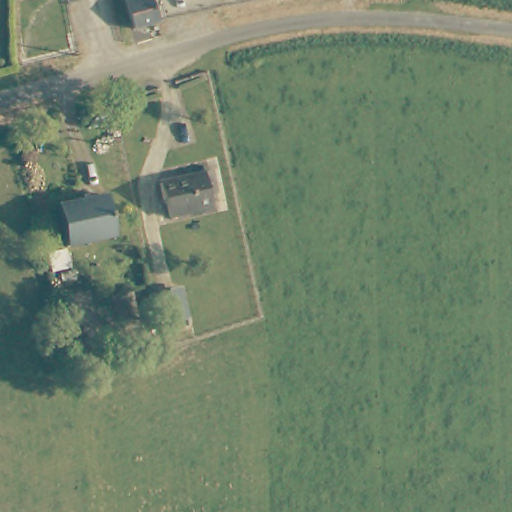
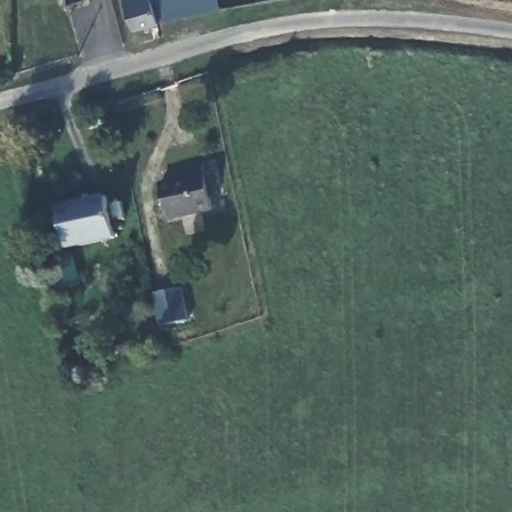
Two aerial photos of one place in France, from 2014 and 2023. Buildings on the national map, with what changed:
unchanged [(132,30),(124,0),(153,0),(160,22),(132,30)]
new [(153,0),(219,0),(220,7),(160,22),(153,0)]
unchanged [(169,220),(160,186),(204,175),(211,172),(216,196),(209,197),(211,210),(169,220)]
unchanged [(67,249),(58,207),(106,198),(114,238),(67,249)]
unchanged [(155,296),(179,292),(185,320),(161,325),(155,296)]

